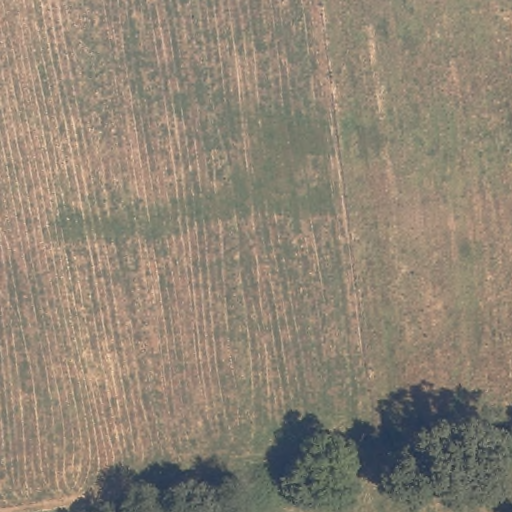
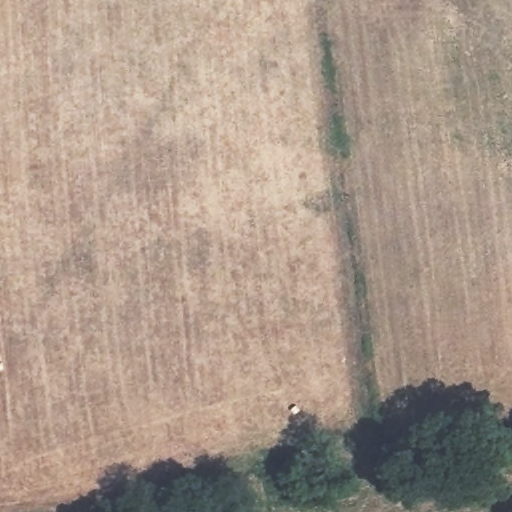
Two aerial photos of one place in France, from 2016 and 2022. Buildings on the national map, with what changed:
[]

